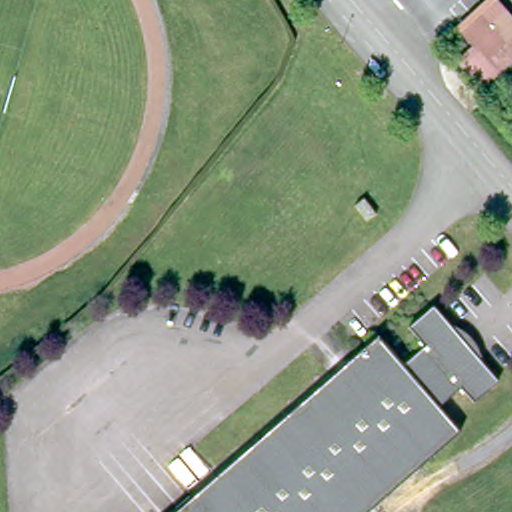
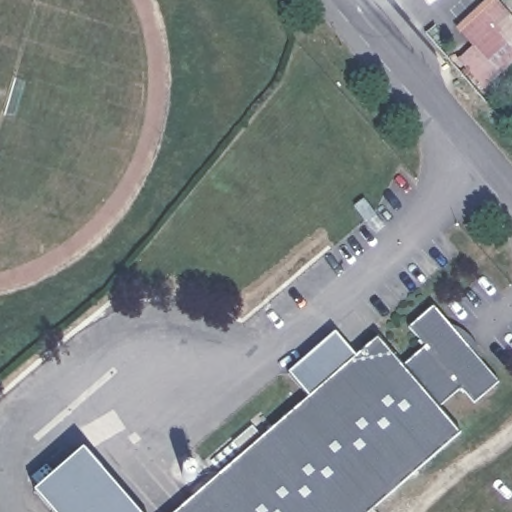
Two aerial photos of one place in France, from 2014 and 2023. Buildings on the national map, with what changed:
unchanged [(494,76),(481,61),(457,35),(475,17),(484,25),(499,10),(512,23),(512,59),(494,76)]
unchanged [(350,207),(359,199),(371,214),(363,221),(350,207)]
unchanged [(475,398),(462,383),(439,402),(462,427),(364,512),(171,512),(378,332),(404,360),(426,341),(409,322),(434,301),(499,377),(475,398)]
new [(307,393),(289,373),(334,332),(354,352),(307,393)]
new [(36,493),(83,452),(136,512),(52,512),(36,493)]

